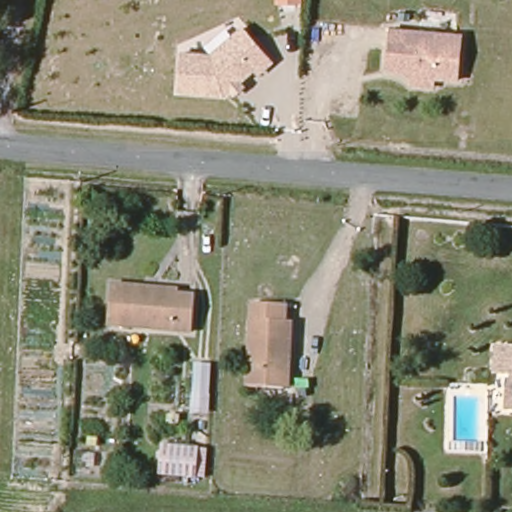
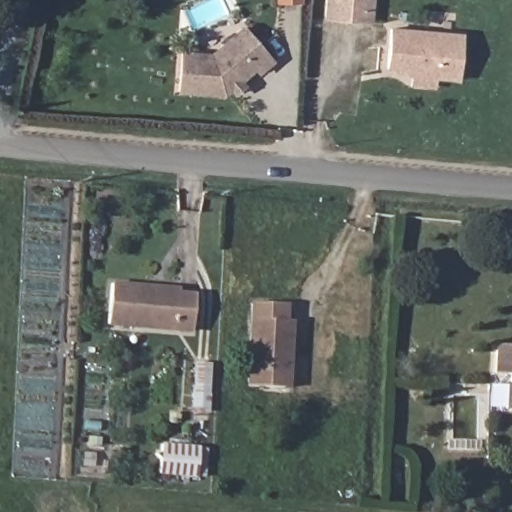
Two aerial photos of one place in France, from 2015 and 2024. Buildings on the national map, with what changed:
new [(279,0),(301,0),(301,3),(279,2),(279,0)]
new [(372,22),(367,21),(327,18),(329,0),(374,0),(372,22)]
unchanged [(458,78),(436,78),(435,85),(411,84),(411,76),(387,73),(392,24),(464,31),(458,78)]
unchanged [(273,62),(258,75),(254,71),(243,82),(246,85),(232,97),(229,93),(224,97),(176,93),(181,51),(211,53),(242,26),(273,62)]
unchanged [(195,335),(113,328),(115,290),(148,292),(182,294),(182,299),(198,300),(195,335)]
unchanged [(293,307),(293,321),(297,321),(296,354),(290,355),(288,391),(253,388),(258,304),(293,307)]
unchanged [(512,341),(512,370),(494,369),(496,340),(512,341)]
unchanged [(211,369),(207,419),(193,418),(195,368),(211,369)]
unchanged [(507,404),(507,381),(512,381),(512,376),(512,404),(507,404)]
unchanged [(197,452),(196,482),(159,480),(161,451),(197,452)]

